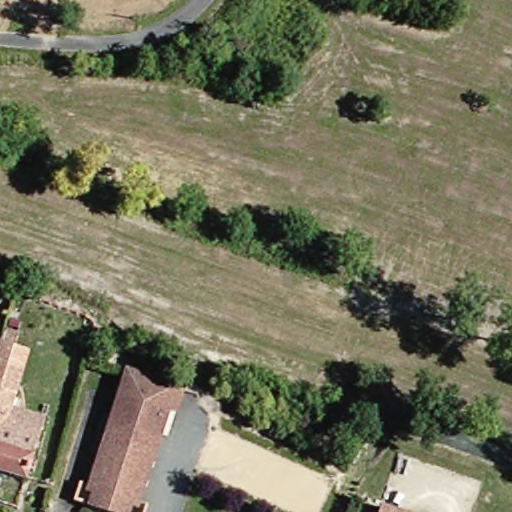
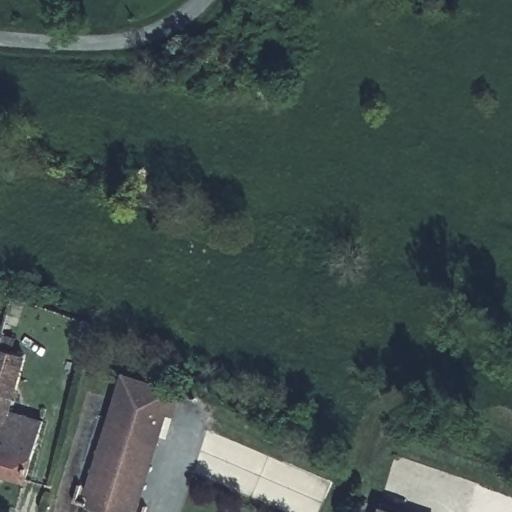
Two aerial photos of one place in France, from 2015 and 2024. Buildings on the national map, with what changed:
unchanged [(217,76),(209,74),(191,68),(199,45),(216,50),(224,52),(217,76)]
unchanged [(0,381),(0,365),(10,331),(36,340),(23,388),(0,381)]
unchanged [(127,504),(125,512),(113,512),(106,510),(109,499),(94,495),(122,397),(124,398),(130,376),(177,390),(185,392),(178,413),(172,411),(143,508),(127,504)]
unchanged [(57,420),(40,483),(0,471),(0,381),(23,388),(17,407),(57,420)]
unchanged [(387,505),(408,512),(384,512),(387,505)]

